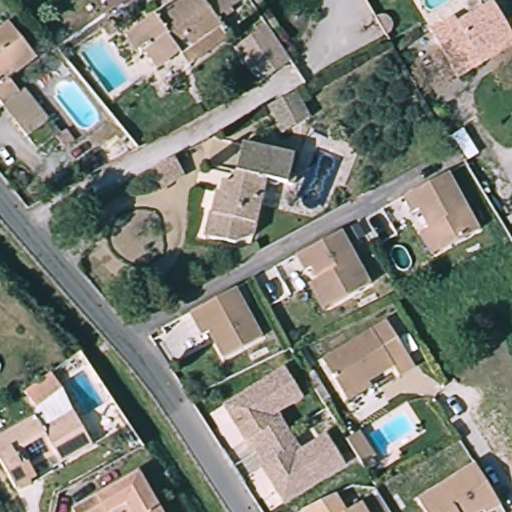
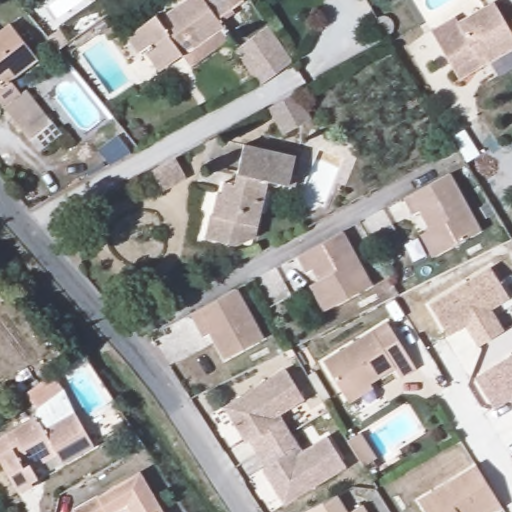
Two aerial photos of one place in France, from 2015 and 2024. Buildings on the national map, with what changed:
unchanged [(217,21),(230,40),(192,67),(182,55),(160,71),(146,54),(142,56),(128,37),(156,16),(158,20),(167,13),(169,15),(183,5),(179,0),(240,0),(242,3),(217,21)]
unchanged [(512,20),(512,46),(456,79),(428,31),(451,18),(456,25),(490,5),(503,26),(512,20)]
unchanged [(72,136),(64,144),(54,131),(34,146),(0,102),(0,25),(8,20),(34,55),(7,76),(17,90),(22,86),(56,129),(63,124),(72,136)]
unchanged [(120,31),(110,38),(105,31),(116,24),(120,31)]
unchanged [(235,47),(265,27),(291,66),(259,84),(235,47)]
unchanged [(280,127),(269,106),(297,91),(308,111),(311,118),(293,128),(284,133),(280,127)]
unchanged [(287,176),(293,177),(291,188),(264,181),(249,238),(234,246),(203,238),(208,217),(210,217),(215,195),(218,196),(221,184),(232,186),(241,145),(291,156),(287,176)]
unchanged [(181,158),(191,176),(168,188),(158,170),(181,158)]
unchanged [(422,231),(432,226),(421,207),(415,210),(406,193),(450,170),(481,226),(444,247),(435,252),(422,231)]
unchanged [(312,282),(320,277),(313,266),(308,268),(299,252),(343,229),(372,280),(334,302),(326,306),(312,282)]
new [(480,347),(470,332),(466,326),(449,336),(431,306),(492,269),(511,298),(492,310),(495,316),(505,332),(480,347)]
unchanged [(258,340),(221,360),(207,334),(200,338),(187,315),(232,291),(258,340)]
unchanged [(341,403),(337,396),(315,360),(396,311),(425,357),(392,378),(385,367),(360,382),(363,388),(341,403)]
new [(494,410),(476,380),(512,357),(512,400),(512,399),(494,410)]
unchanged [(290,371),(309,400),(283,417),(306,454),(332,438),(350,468),(288,506),(275,484),(281,480),(273,468),(270,469),(254,442),(256,441),(256,439),(248,427),(243,431),(229,408),(290,371)]
unchanged [(40,431),(70,413),(90,445),(58,464),(53,456),(28,470),(33,478),(12,490),(0,469),(0,436),(32,417),(40,431)]
unchanged [(415,502),(472,466),(498,507),(490,512),(482,512),(481,510),(478,512),(422,512),(415,502)]
unchanged [(139,473),(162,512),(75,512),(75,511),(139,473)]
unchanged [(338,490),(351,510),(365,501),(372,512),(308,512),(304,507),(338,490)]

